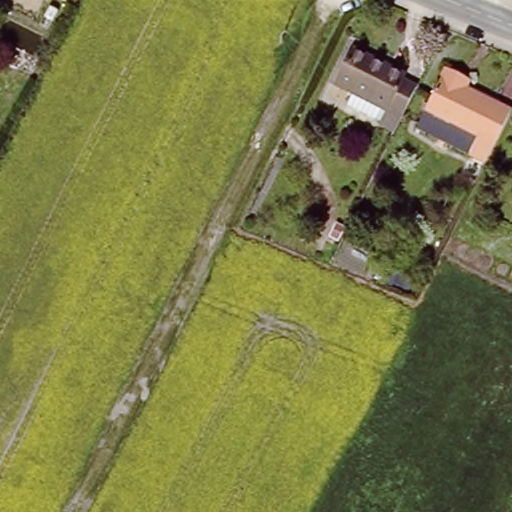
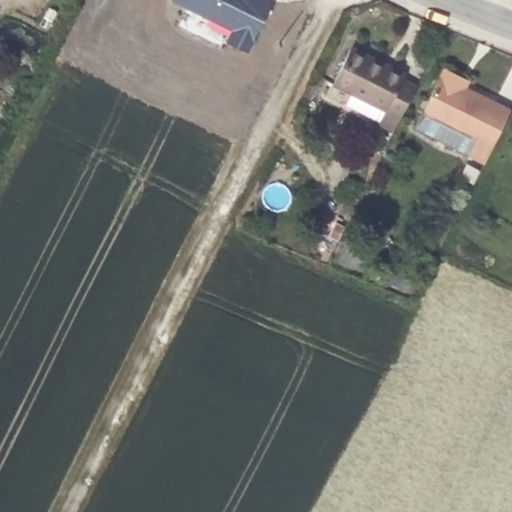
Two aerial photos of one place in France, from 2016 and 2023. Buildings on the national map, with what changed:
unchanged [(73,1),(71,0),(74,0),(73,1)]
new [(273,2),(247,53),(227,43),(233,29),(177,0),(270,0),(273,2)]
unchanged [(396,123),(394,127),(345,101),(353,87),(336,78),(356,41),(408,70),(406,74),(419,81),(396,123)]
unchanged [(472,154),(418,126),(425,113),(444,76),(511,109),(492,147),(485,161),(472,154)]

